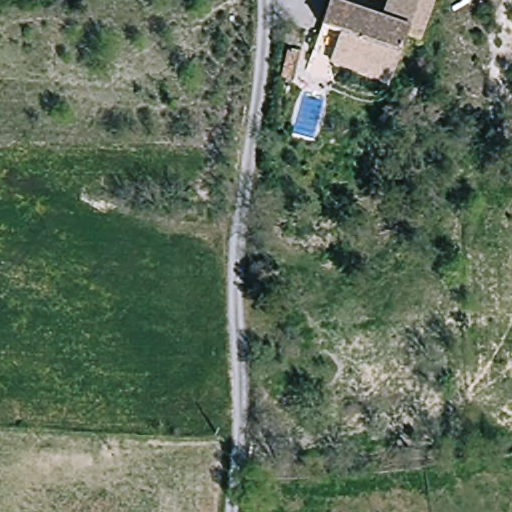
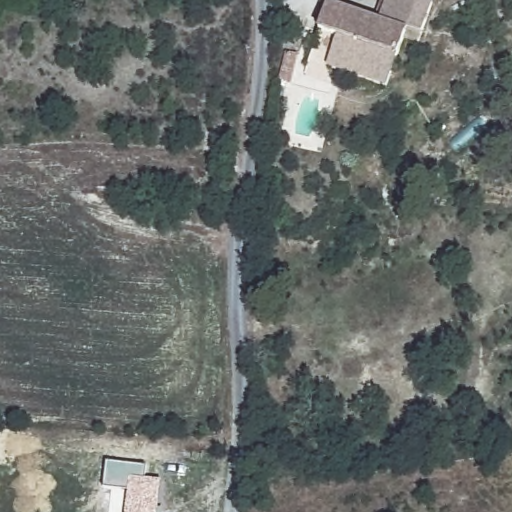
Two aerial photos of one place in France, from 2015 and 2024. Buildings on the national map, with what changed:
unchanged [(328,69),(331,60),(339,39),(319,31),(329,6),(379,24),(388,0),(417,0),(433,5),(418,45),(404,40),(391,80),(388,89),(328,69)]
unchanged [(299,57),(291,86),(280,81),(287,55),(299,57)]
new [(104,487),(107,462),(146,467),(144,479),(163,481),(158,512),(125,512),(128,490),(104,487)]

